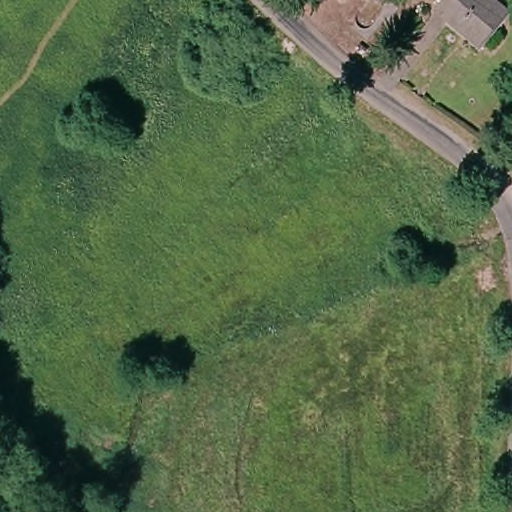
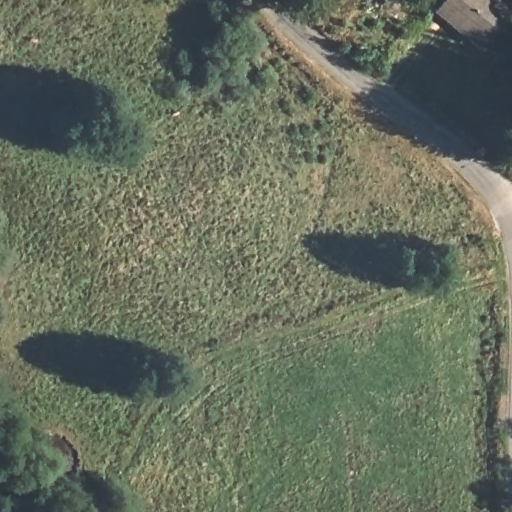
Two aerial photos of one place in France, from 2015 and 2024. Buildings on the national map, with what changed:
unchanged [(464,39),(444,21),(442,23),(430,11),(440,0),(486,0),(505,16),(475,52),(463,41),(464,39)]

